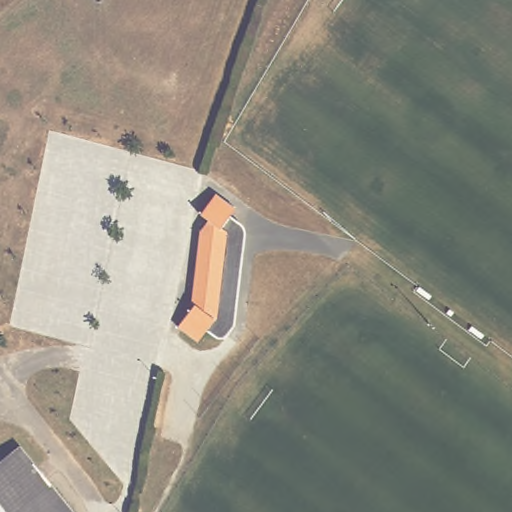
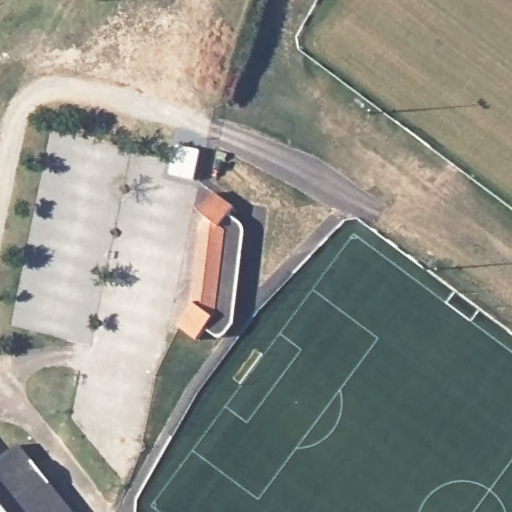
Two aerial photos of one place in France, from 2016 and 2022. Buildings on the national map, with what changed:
unchanged [(249,215),(243,221),(232,232),(235,240),(248,243),(233,327),(223,338),(214,332),(205,341),(187,325),(203,302),(198,301),(210,233),(219,226),(213,216),(230,197),(249,215)]
unchanged [(19,445),(76,512),(0,512),(0,460),(19,445)]

